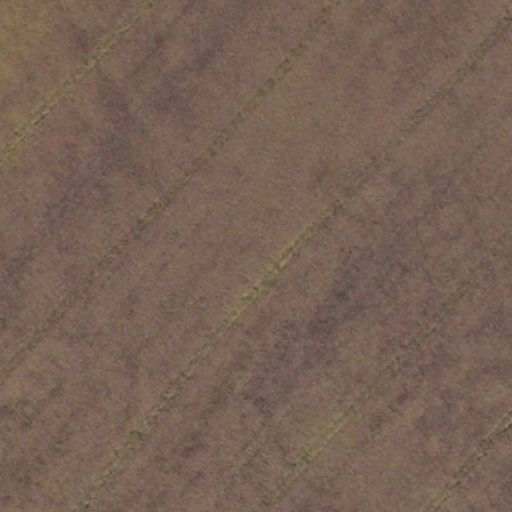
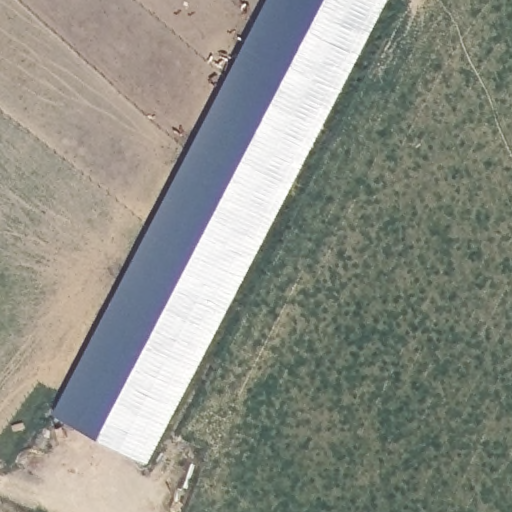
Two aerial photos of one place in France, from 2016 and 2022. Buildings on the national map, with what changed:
new [(270,0),(386,0),(148,463),(54,414),(270,0)]

